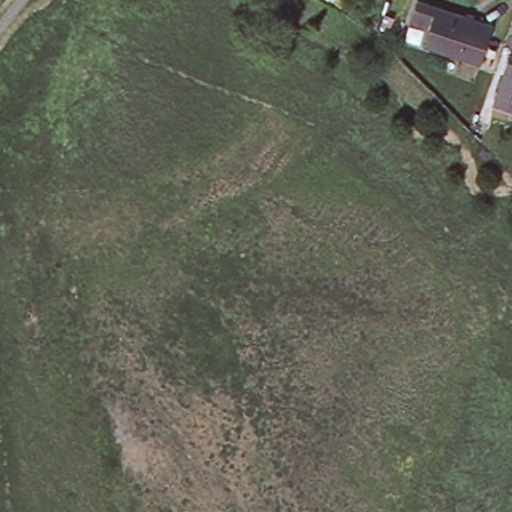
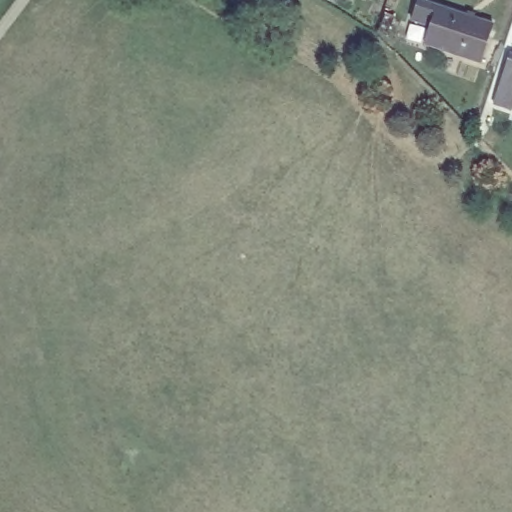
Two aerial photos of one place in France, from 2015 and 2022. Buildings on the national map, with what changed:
unchanged [(430,43),(436,23),(417,17),(422,0),(428,0),(496,22),(484,61),(430,43)]
unchanged [(497,107),(507,76),(512,63),(512,111),(497,107)]

